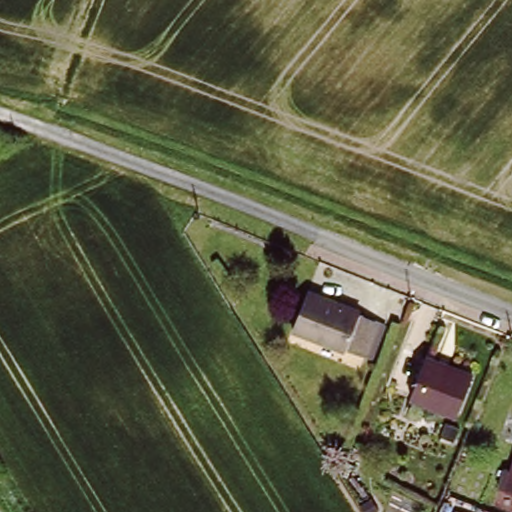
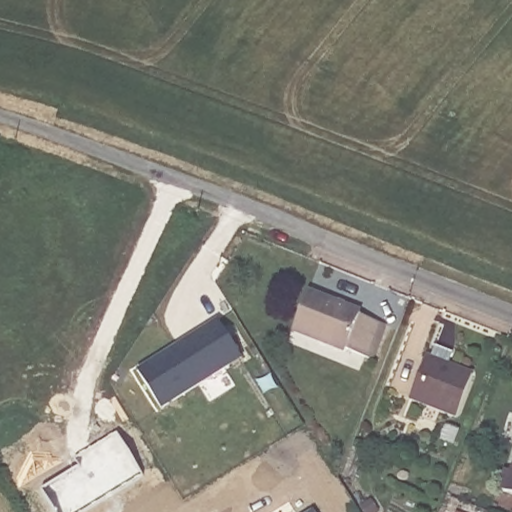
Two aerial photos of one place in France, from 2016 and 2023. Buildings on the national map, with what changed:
unchanged [(386,321),(373,354),(350,345),(349,348),(296,327),(312,288),(364,309),(364,312),(386,321)]
new [(163,410),(138,370),(218,320),(243,360),(163,410)]
unchanged [(455,413),(409,395),(427,353),(472,371),(455,413)]
unchanged [(494,490),(500,470),(506,472),(512,452),(512,496),(494,490)]
unchanged [(377,512),(360,512),(359,509),(371,502),(377,512)]
new [(310,512),(313,511),(313,512),(310,512)]

